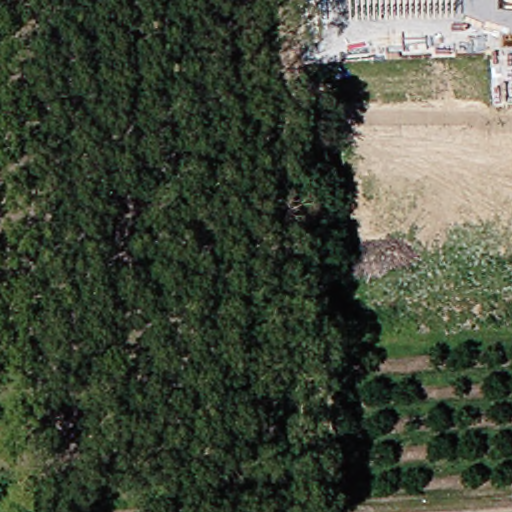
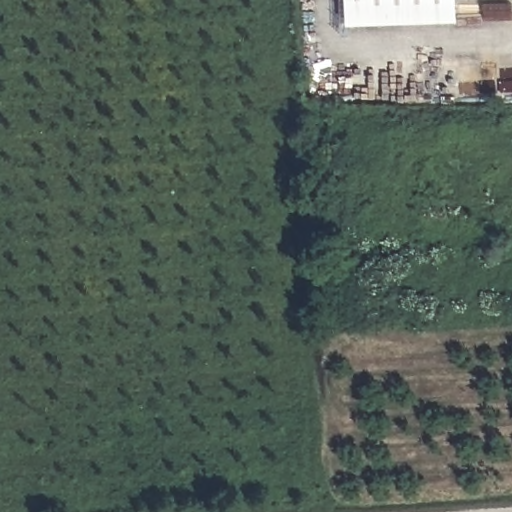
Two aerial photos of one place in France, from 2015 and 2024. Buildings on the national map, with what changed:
new [(348,0),(458,0),(458,21),(349,26),(348,0)]

